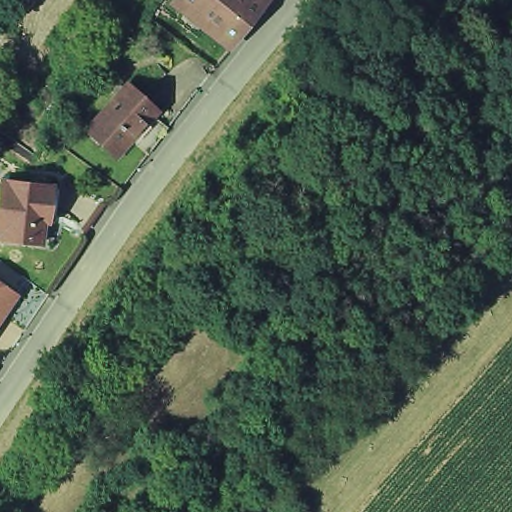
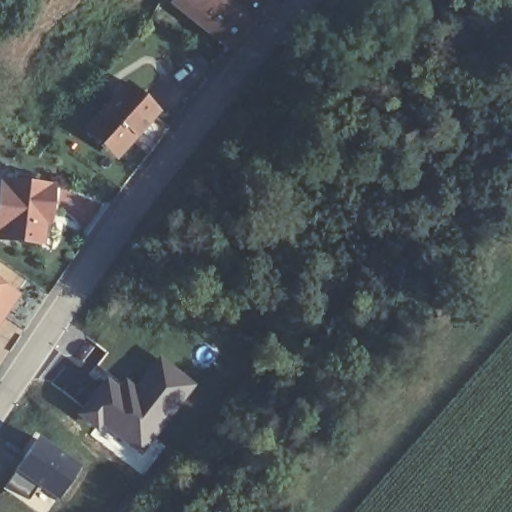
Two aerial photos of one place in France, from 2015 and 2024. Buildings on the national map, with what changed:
unchanged [(172,6),(176,0),(234,0),(258,19),(232,52),(172,6)]
demolished [(440,0),(449,0),(447,4),(440,0)]
demolished [(465,31),(455,52),(420,35),(432,14),(440,19),(465,31)]
unchanged [(97,126),(133,84),(161,108),(125,150),(97,126)]
unchanged [(0,246),(0,174),(57,178),(53,247),(0,246)]
unchanged [(23,297),(10,317),(0,331),(0,281),(23,297)]
new [(105,373),(119,383),(125,376),(137,385),(160,355),(198,382),(158,437),(144,426),(128,448),(75,412),(105,373)]
new [(83,462),(51,512),(35,512),(1,490),(36,433),(83,462)]

